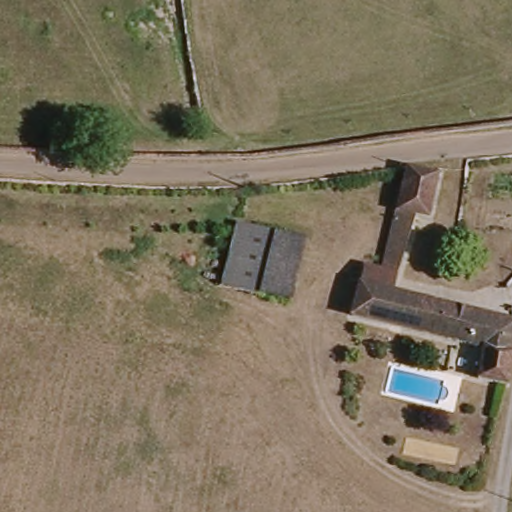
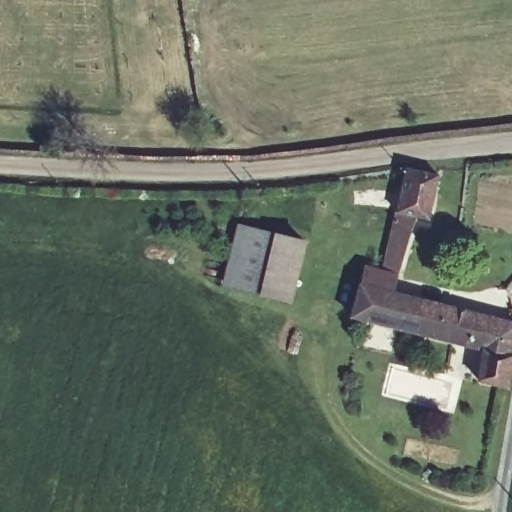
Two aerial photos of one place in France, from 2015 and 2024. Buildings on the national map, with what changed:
unchanged [(406,162),(429,168),(430,159),(445,158),(430,227),(419,225),(405,292),(512,316),(512,361),(509,381),(482,375),(486,347),(355,318),(362,284),(367,265),(384,267),(406,162)]
unchanged [(228,283),(238,227),(270,233),(268,240),(259,289),(228,283)]
unchanged [(259,289),(268,240),(296,245),(287,294),(259,289)]

